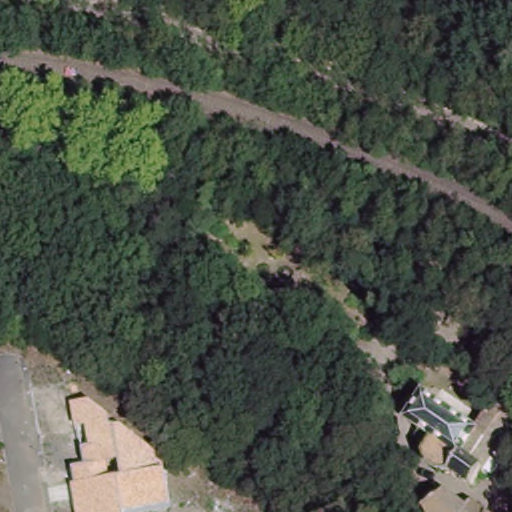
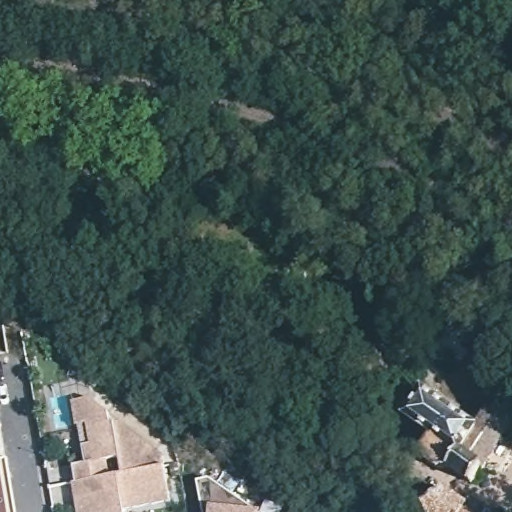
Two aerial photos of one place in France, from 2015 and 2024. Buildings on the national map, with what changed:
unchanged [(512,403),(512,431),(482,488),(431,466),(444,441),(410,420),(435,382),(480,415),(492,393),(512,403)]
unchanged [(125,512),(77,512),(71,483),(76,482),(73,465),(85,463),(82,446),(89,445),(86,423),(76,425),(73,405),(90,400),(110,413),(113,425),(120,425),(163,458),(165,466),(169,502),(124,510),(125,512)]
new [(259,512),(203,512),(197,484),(213,481),(259,512)]
unchanged [(435,483),(464,493),(469,485),(512,503),(512,512),(417,512),(415,501),(435,483)]

